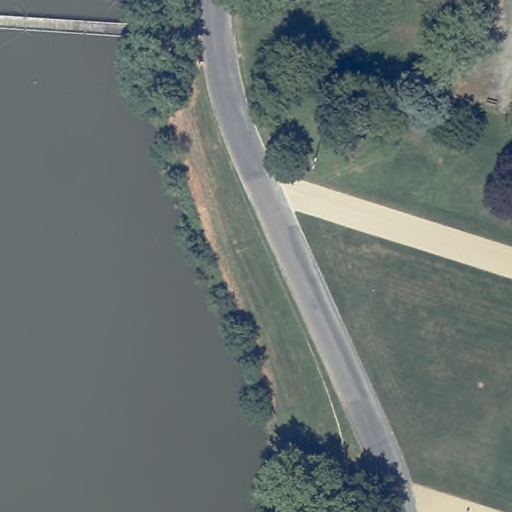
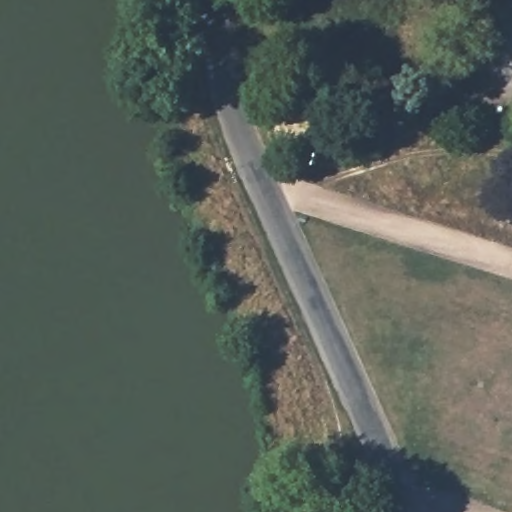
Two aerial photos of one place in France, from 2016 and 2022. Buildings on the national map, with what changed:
[]

